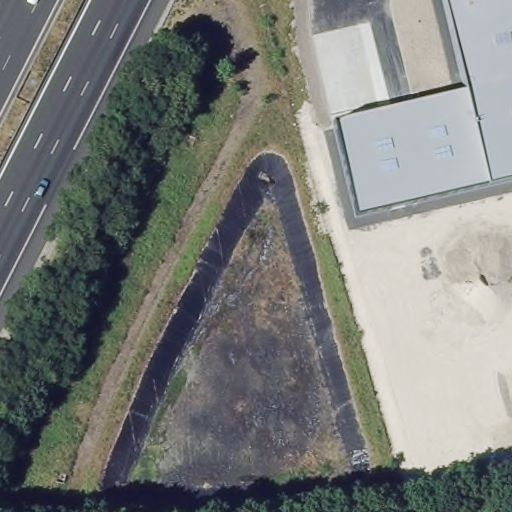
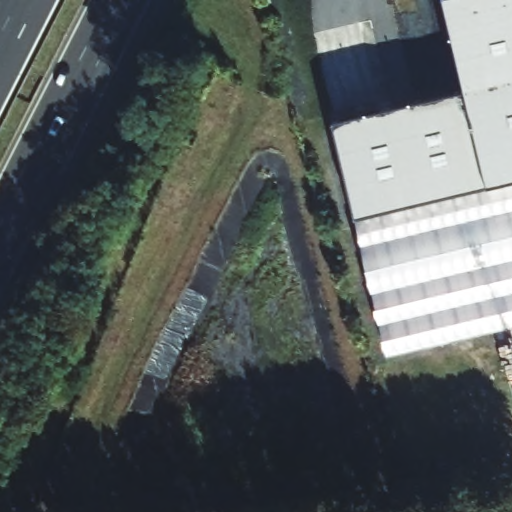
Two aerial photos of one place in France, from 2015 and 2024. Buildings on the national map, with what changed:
unchanged [(485,184),(357,215),(336,123),(464,92),(466,91),(444,0),(512,0),(512,179),(488,185),(485,184)]
new [(485,184),(488,185),(512,179),(512,333),(390,360),(357,215),(485,184)]

